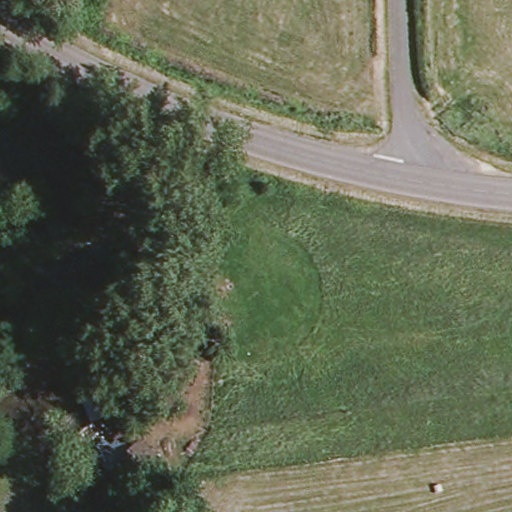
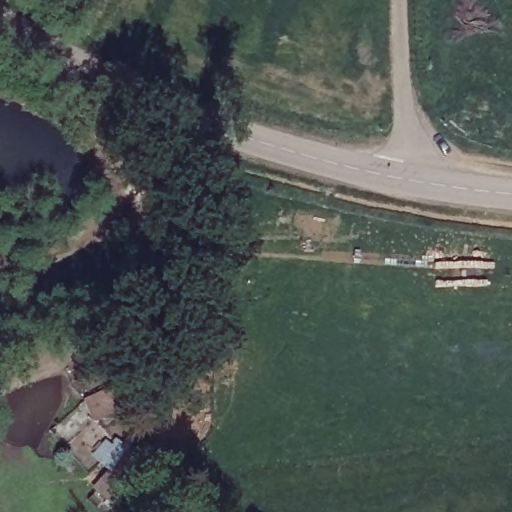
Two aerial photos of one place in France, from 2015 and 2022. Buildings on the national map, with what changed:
unchanged [(158,457),(168,470),(153,488),(137,480),(114,507),(93,491),(107,466),(96,457),(112,438),(132,449),(141,439),(158,457)]

